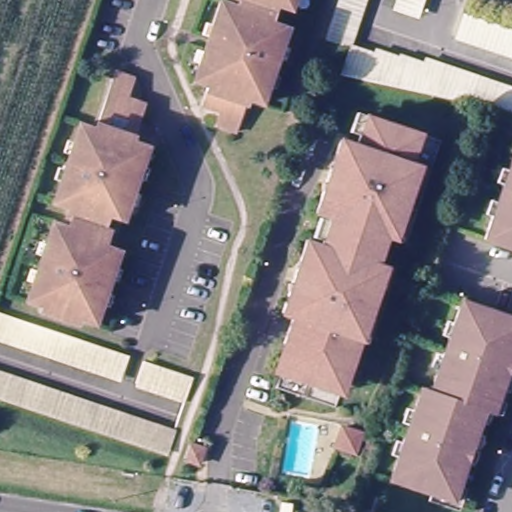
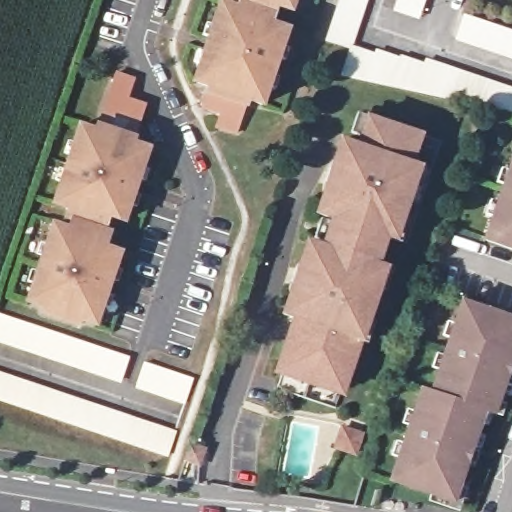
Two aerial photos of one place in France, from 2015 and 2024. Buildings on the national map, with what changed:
unchanged [(277,3),(271,21),(287,26),(264,100),(251,96),(241,129),(220,123),(224,110),(205,104),(212,83),(197,78),(221,0),(237,4),(239,0),(291,0),(289,7),(277,3)]
unchanged [(327,35),(339,0),(366,0),(352,41),(351,43),(327,35)]
unchanged [(399,0),(426,0),(420,21),(395,13),(399,0)]
unchanged [(466,8),(512,22),(512,48),(459,32),(466,8)]
unchanged [(376,47),(400,55),(401,52),(425,60),(426,55),(512,83),(512,118),(490,111),(341,75),(351,43),(352,41),(376,49),(376,47)]
unchanged [(130,80),(125,98),(142,104),(130,141),(147,147),(122,221),(107,216),(102,229),(108,232),(104,247),(119,253),(94,328),(78,321),(76,327),(44,316),(46,310),(29,304),(52,229),(68,234),(71,224),(65,222),(68,212),(51,207),(76,129),(93,134),(111,74),(130,80)]
unchanged [(287,377),(274,373),(278,360),(284,344),(282,343),(291,316),(281,312),(288,292),(298,261),(306,240),(316,243),(320,245),(329,217),(326,216),(315,212),(322,191),(333,160),(340,139),(350,142),(355,144),(365,115),(421,134),(412,163),(414,164),(411,175),(416,177),(411,190),(409,190),(400,215),(402,216),(398,229),(393,228),(389,238),(387,237),(377,265),(380,266),(376,277),(381,278),(377,291),(374,291),(366,316),(368,317),(364,329),(359,328),(356,336),(360,338),(350,367),(348,366),(343,381),(338,395),(326,390),(287,377)]
unchanged [(512,165),(512,250),(486,241),(512,165)]
unchanged [(505,377),(492,415),(483,412),(429,394),(460,303),(512,320),(512,357),(510,361),(512,362),(512,377),(511,379),(505,377)]
unchanged [(0,338),(0,310),(130,356),(121,382),(0,338)]
unchanged [(136,386),(145,362),(194,379),(186,404),(136,386)]
unchanged [(0,398),(0,370),(175,432),(166,457),(0,398)]
unchanged [(451,504),(388,482),(419,391),(429,394),(483,412),(470,450),(476,452),(471,467),(464,465),(451,504)]
unchanged [(337,446),(344,427),(363,434),(356,453),(337,446)]

